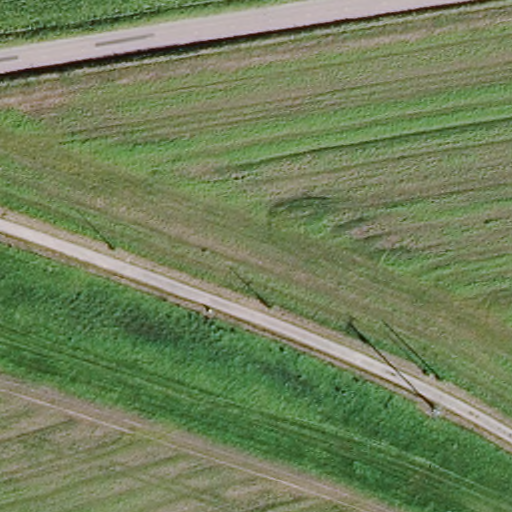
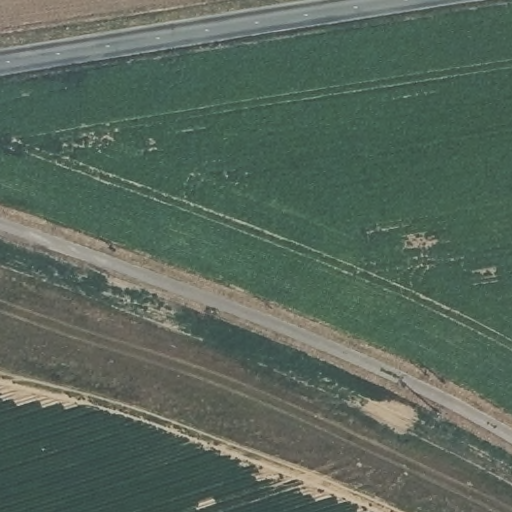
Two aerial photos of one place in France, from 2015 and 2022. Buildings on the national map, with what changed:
[]

